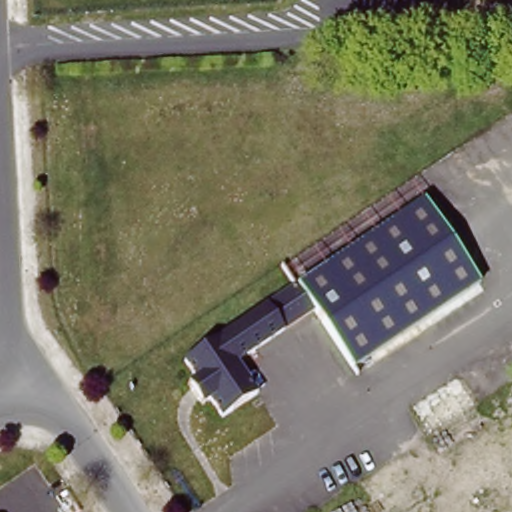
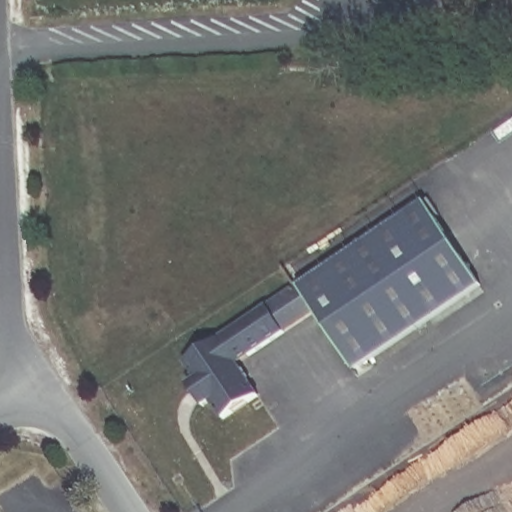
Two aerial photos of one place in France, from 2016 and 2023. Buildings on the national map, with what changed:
unchanged [(472,283),(351,372),(310,312),(295,290),(416,206),(472,283)]
unchanged [(310,312),(233,362),(256,398),(210,422),(201,402),(196,406),(183,385),(188,382),(175,368),(222,337),(218,332),(260,307),(255,300),(288,282),(295,290),(310,312)]

